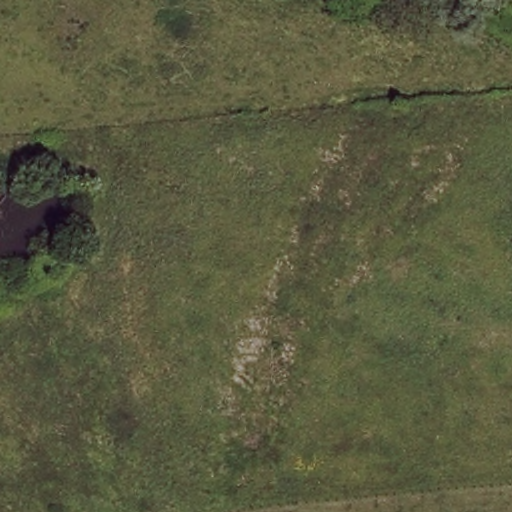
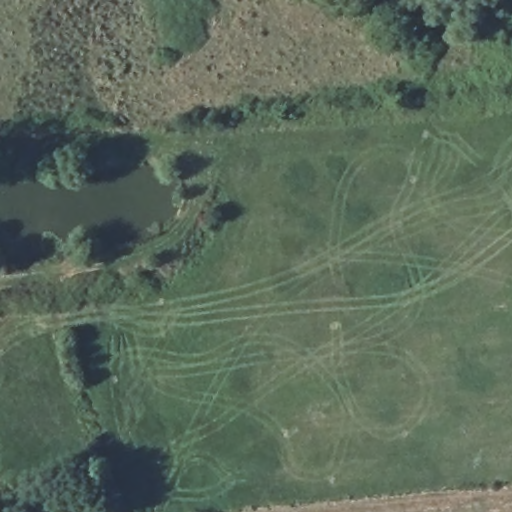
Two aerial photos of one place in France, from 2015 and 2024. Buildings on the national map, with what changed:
[]

